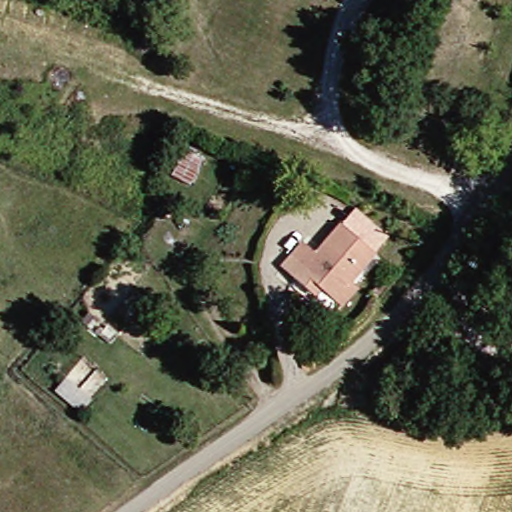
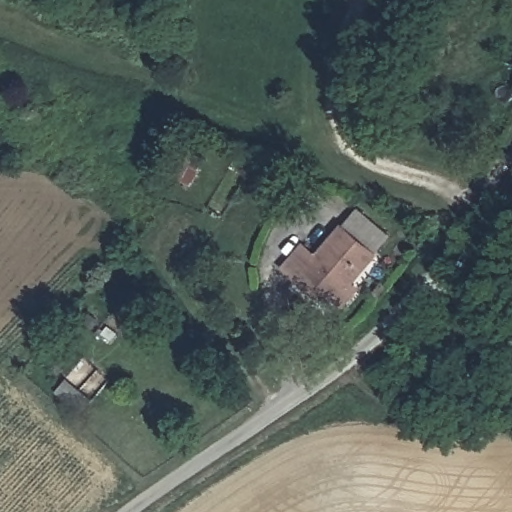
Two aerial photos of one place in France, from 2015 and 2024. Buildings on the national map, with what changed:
unchanged [(356,308),(347,300),(336,292),(329,298),(309,282),(294,270),(313,248),(324,256),(349,225),(383,253),(363,281),(372,291),(356,308)]

